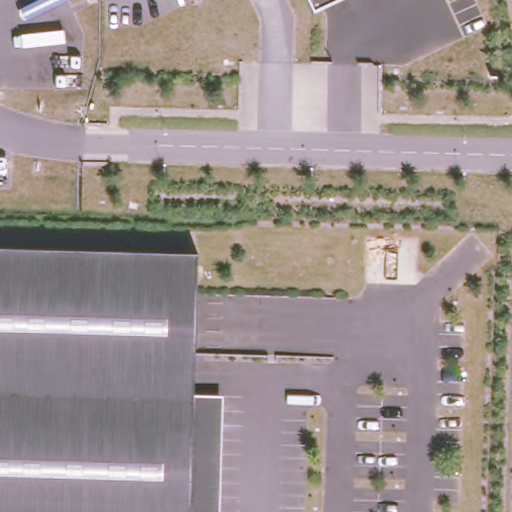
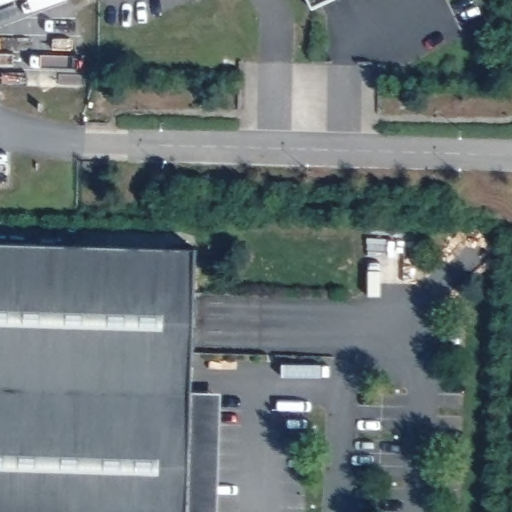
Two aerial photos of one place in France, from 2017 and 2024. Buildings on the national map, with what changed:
unchanged [(328,0),(313,6),(310,0),(328,0)]
unchanged [(190,395),(222,395),(218,512),(0,512),(0,247),(195,254),(190,395)]

